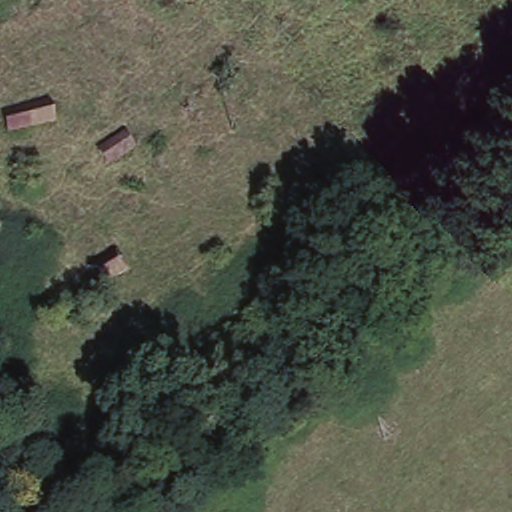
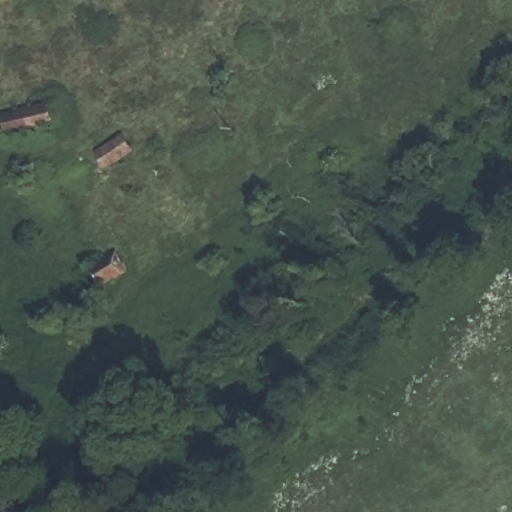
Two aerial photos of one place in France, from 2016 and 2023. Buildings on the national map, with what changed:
unchanged [(51,102),(55,123),(6,133),(1,113),(51,102)]
unchanged [(127,136),(139,153),(111,168),(102,154),(127,136)]
unchanged [(117,253),(129,271),(99,289),(87,270),(117,253)]

